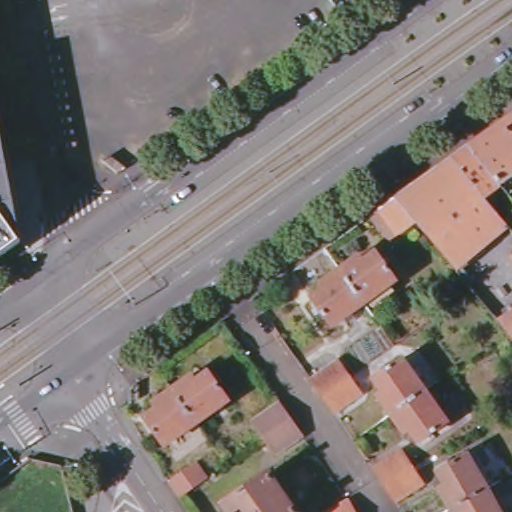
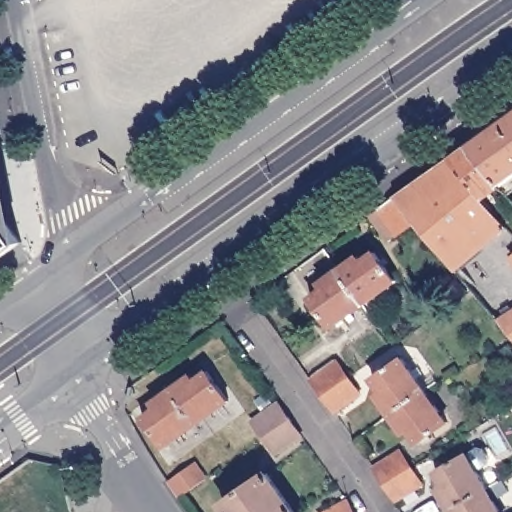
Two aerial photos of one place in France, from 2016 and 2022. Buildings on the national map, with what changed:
unchanged [(512,111),(512,168),(497,178),(470,141),(512,111)]
unchanged [(5,146),(0,147),(0,123),(5,146)]
unchanged [(510,213),(502,218),(451,154),(470,141),(497,178),(500,183),(492,189),(510,213)]
unchanged [(380,205),(395,194),(451,154),(502,218),(505,223),(450,261),(415,218),(400,231),(380,205)]
unchanged [(23,244),(0,261),(0,212),(23,244)]
unchanged [(512,219),(512,231),(507,224),(512,219)]
unchanged [(512,248),(512,261),(506,253),(512,248)]
unchanged [(372,266),(385,257),(402,281),(368,305),(353,285),(345,273),(366,257),(372,266)]
unchanged [(335,330),(317,306),(330,296),(323,287),(345,273),(353,285),(368,305),(335,330)]
unchanged [(502,319),(512,313),(512,331),(511,330),(502,319)]
unchanged [(388,387),(380,375),(407,356),(430,388),(397,410),(384,391),(388,387)]
unchanged [(333,409),(323,395),(313,381),(340,363),(349,376),(360,391),(333,409)]
unchanged [(197,382),(210,372),(232,404),(198,428),(198,429),(173,393),(194,377),(197,382)]
unchanged [(453,422),(425,440),(416,426),(410,429),(397,410),(430,388),(453,422)]
unchanged [(168,450),(145,418),(158,410),(155,405),(173,393),(198,429),(168,450)]
unchanged [(265,440),(253,424),(280,405),(292,420),(303,437),(276,455),(265,440)]
unchanged [(397,502),(387,486),(377,470),(402,453),(413,470),(423,486),(397,502)]
unchanged [(473,457),(492,491),(482,496),(471,502),(455,511),(443,489),(452,485),(445,473),(473,457)]
unchanged [(207,480),(182,498),(168,480),(193,462),(207,480)]
unchanged [(293,512),(224,512),(222,508),(267,476),(293,512)]
unchanged [(482,496),(492,491),(510,480),(512,484),(512,497),(499,504),(504,512),(456,512),(455,511),(471,502),(482,496)]
unchanged [(355,512),(332,512),(350,502),(355,512)]

